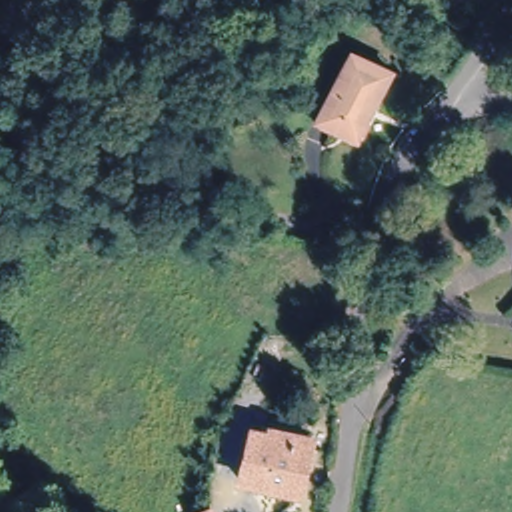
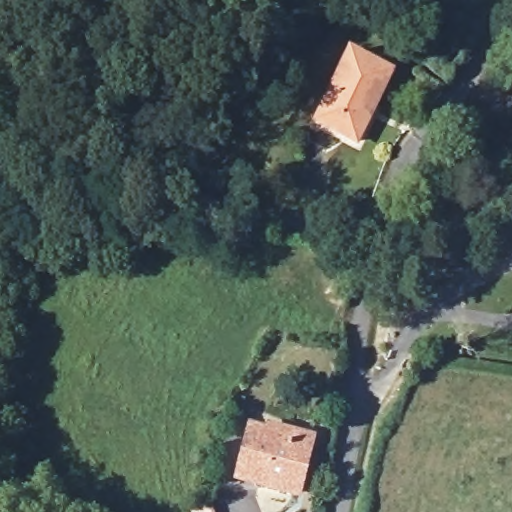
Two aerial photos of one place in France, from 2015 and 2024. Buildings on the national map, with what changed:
unchanged [(351,52),(391,72),(356,141),(315,120),(351,52)]
unchanged [(290,493),(239,482),(252,428),(268,432),(269,427),(311,438),(305,465),(298,495),(290,493)]
unchanged [(209,512),(201,512),(208,510),(209,512)]

